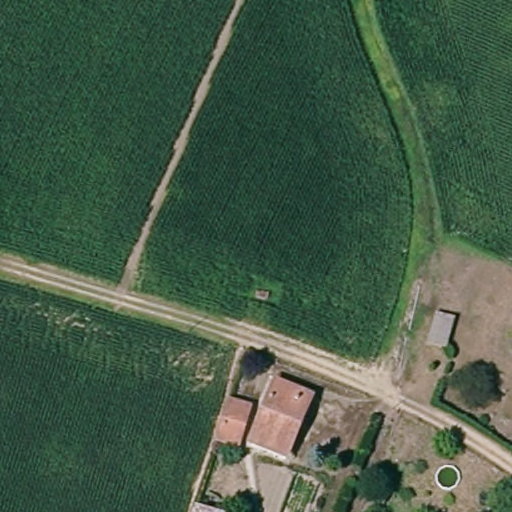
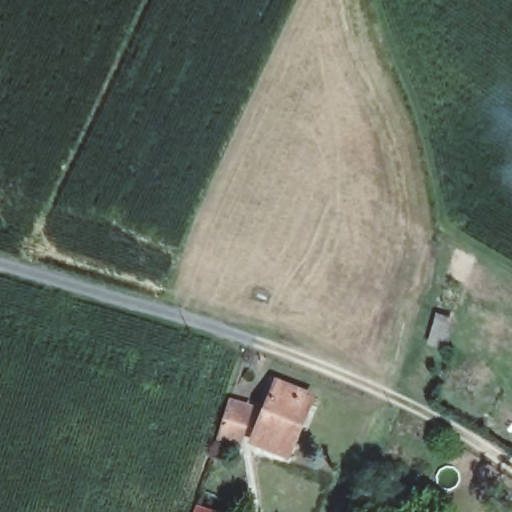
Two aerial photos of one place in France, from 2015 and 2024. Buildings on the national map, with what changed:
unchanged [(469,304),(462,325),(443,319),(449,299),(469,304)]
unchanged [(245,444),(242,455),(217,446),(229,405),(261,413),(275,382),(317,398),(285,464),(245,444)]
unchanged [(202,512),(192,512),(192,509),(202,512)]

